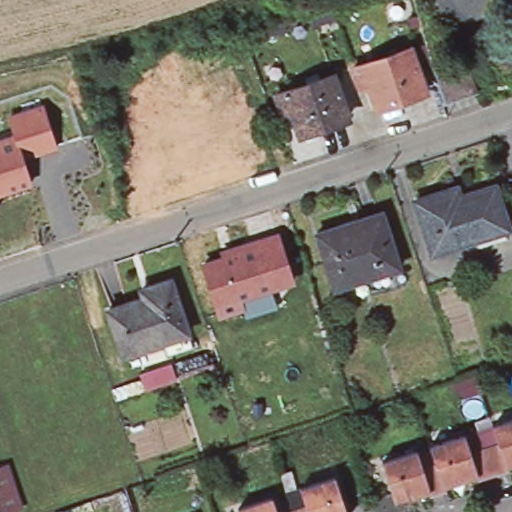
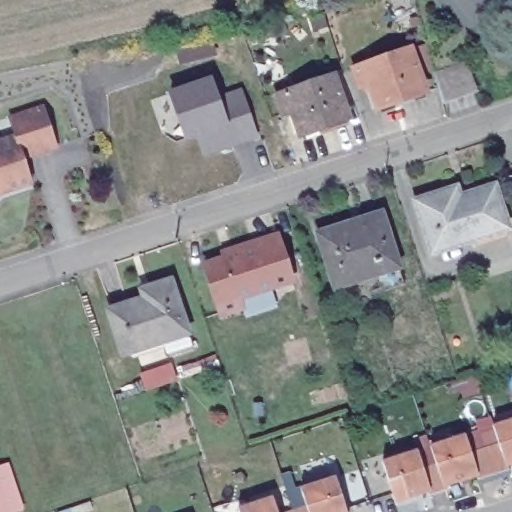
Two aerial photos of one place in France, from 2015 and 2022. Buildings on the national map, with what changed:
unchanged [(408,49),(423,90),(377,108),(367,83),(358,87),(352,69),(408,49)]
unchanged [(470,66),(477,94),(442,103),(435,76),(470,66)]
new [(205,157),(198,137),(185,141),(169,92),(212,77),(218,98),(243,89),(259,139),(205,157)]
unchanged [(332,77),(347,119),(300,137),(290,113),(280,117),(274,99),(332,77)]
unchanged [(16,134),(8,117),(47,105),(60,149),(28,165),(35,184),(0,196),(0,139),(16,134)]
unchanged [(456,188),(459,197),(493,186),(507,230),(433,254),(416,201),(456,188)]
unchanged [(381,292),(375,275),(335,288),(317,232),(339,225),(337,219),(359,213),(360,218),(382,212),(398,267),(404,284),(381,292)]
unchanged [(295,282),(243,302),(246,311),(220,319),(201,266),(223,257),(222,252),(280,234),(295,282)]
unchanged [(170,351),(165,336),(127,349),(113,307),(147,295),(145,285),(152,283),(173,276),(191,328),(195,342),(170,351)]
unchanged [(217,367),(128,397),(123,380),(213,351),(217,367)]
unchanged [(492,426),(512,419),(512,464),(507,466),(508,469),(493,475),(484,448),(498,443),(492,426)]
unchanged [(430,446),(463,435),(470,453),(484,448),(493,475),(477,480),(475,477),(445,487),(436,463),(430,446)]
unchanged [(417,450),(422,468),(436,463),(445,487),(445,490),(429,495),(427,491),(395,502),(382,461),(417,450)]
unchanged [(300,488),(334,477),(346,512),(293,512),(292,511),(306,506),(300,488)]
unchanged [(6,512),(0,512),(0,494),(6,512)]
unchanged [(277,512),(240,512),(238,509),(272,498),(277,512)]
unchanged [(293,512),(288,512),(292,511),(293,512)]

